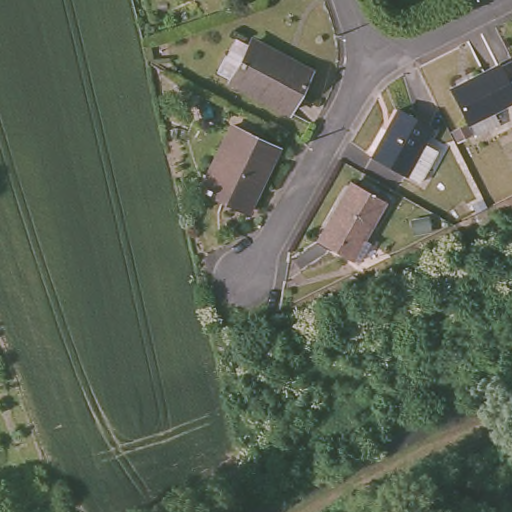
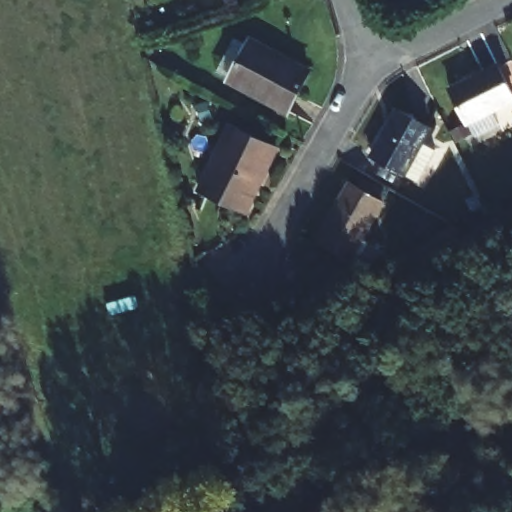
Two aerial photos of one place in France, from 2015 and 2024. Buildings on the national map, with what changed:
unchanged [(280,110),(223,77),(245,39),(303,69),(280,110)]
unchanged [(470,129),(455,95),(501,72),(512,96),(512,109),(470,129)]
unchanged [(432,133),(424,146),(437,155),(420,186),(372,158),(400,114),(432,133)]
unchanged [(244,211),(200,186),(234,125),(277,149),(244,211)]
unchanged [(382,204),(350,258),(319,241),(351,186),(382,204)]

